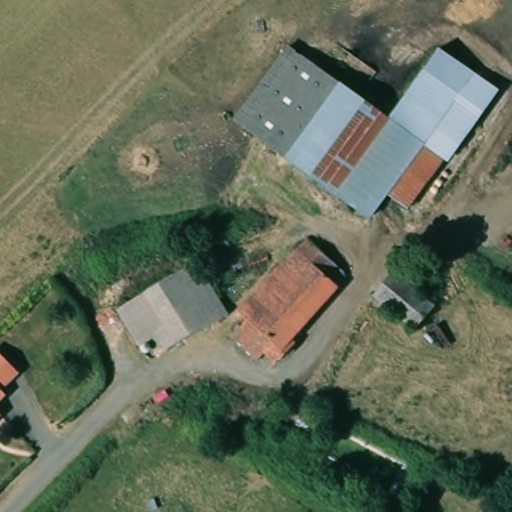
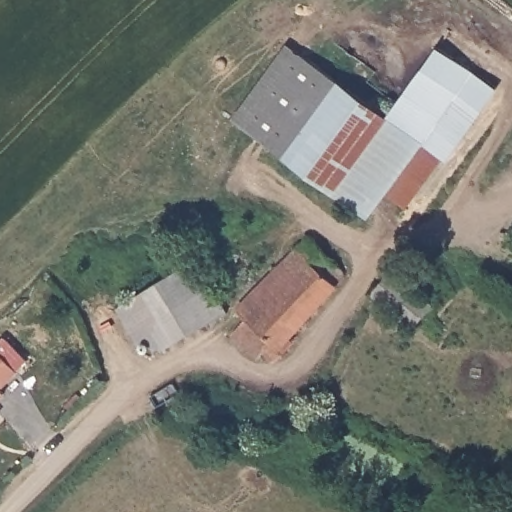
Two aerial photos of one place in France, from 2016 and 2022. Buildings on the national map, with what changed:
unchanged [(392,197),(373,219),(237,118),(292,41),(392,113),(441,46),(501,87),(417,212),(392,197)]
unchanged [(254,321),(242,309),(312,234),(355,269),(283,344),(288,349),(271,368),(236,341),(254,321)]
unchanged [(202,259),(230,311),(180,342),(154,359),(126,308),(202,259)]
unchanged [(439,301),(415,329),(372,295),(397,265),(439,301)]
unchanged [(3,352),(23,378),(6,393),(10,398),(0,406),(0,354),(3,352)]
unchanged [(260,386),(298,390),(296,424),(255,418),(260,386)]
unchanged [(6,415),(0,419),(0,407),(6,415)]

